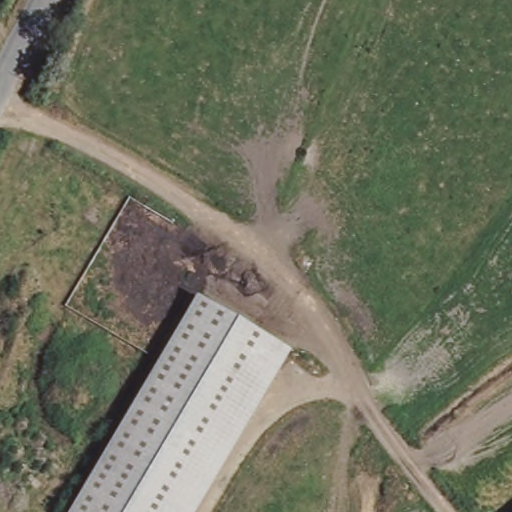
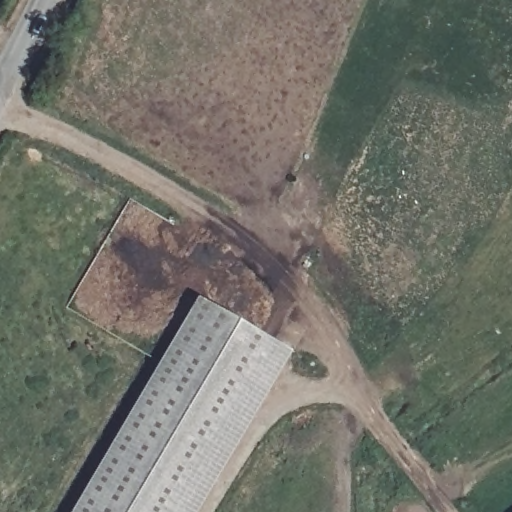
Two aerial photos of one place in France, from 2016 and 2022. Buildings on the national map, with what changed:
unchanged [(197,512),(72,512),(199,294),(294,349),(197,512)]

